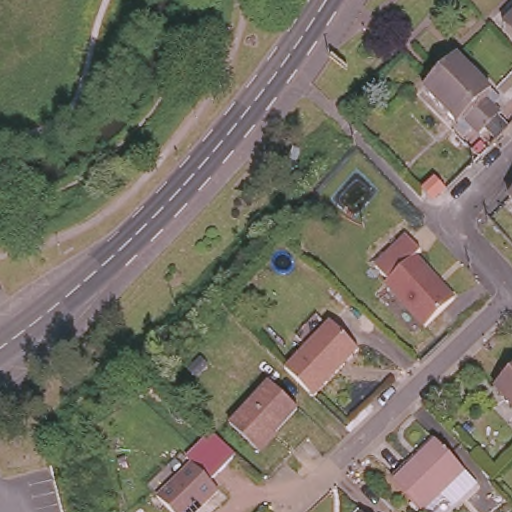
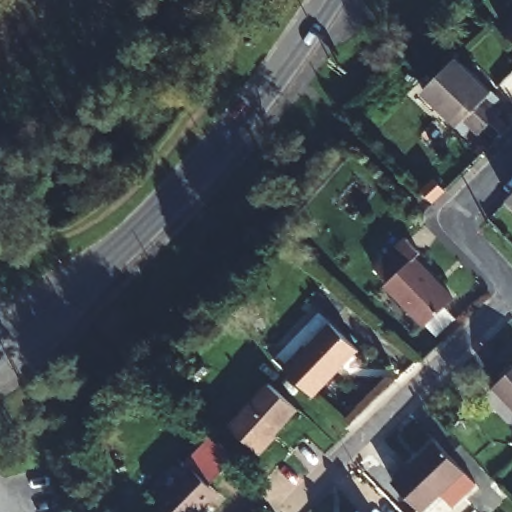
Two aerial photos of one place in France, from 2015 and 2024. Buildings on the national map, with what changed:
unchanged [(512,13),(512,38),(500,25),(512,13)]
unchanged [(448,55),(482,88),(486,84),(493,91),(488,96),(495,102),(488,109),(502,123),(496,129),(434,69),(448,55)]
unchanged [(496,129),(488,137),(474,123),(470,127),(464,121),(456,128),(449,120),(453,116),(420,83),(434,69),(496,129)]
unchanged [(449,129),(467,145),(458,152),(442,136),(449,129)]
unchanged [(512,177),(512,195),(503,186),(512,177)]
unchanged [(433,183),(443,192),(434,201),(425,192),(433,183)]
unchanged [(405,239),(419,254),(414,259),(452,300),(425,326),(384,285),(387,283),(374,269),(405,239)]
unchanged [(303,388),(285,371),(329,323),(359,351),(314,398),(303,388)]
unchanged [(512,369),(512,401),(496,384),(512,369)]
unchanged [(25,389),(40,378),(48,390),(33,401),(25,389)]
unchanged [(270,386),(297,412),(258,455),(230,429),(270,386)]
unchanged [(432,443),(473,485),(449,508),(435,494),(418,511),(391,483),(432,443)]
unchanged [(196,512),(176,512),(160,496),(194,461),(220,486),(196,512)]

